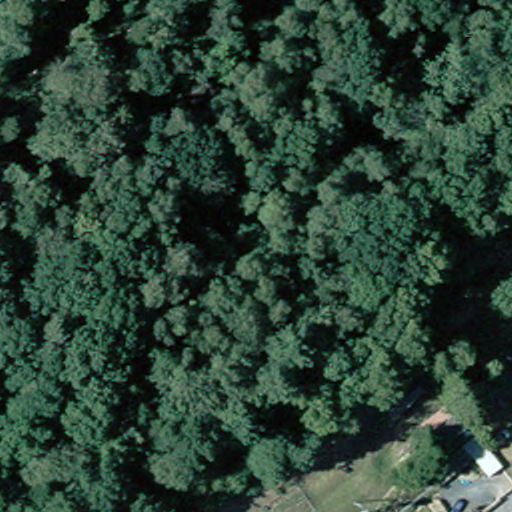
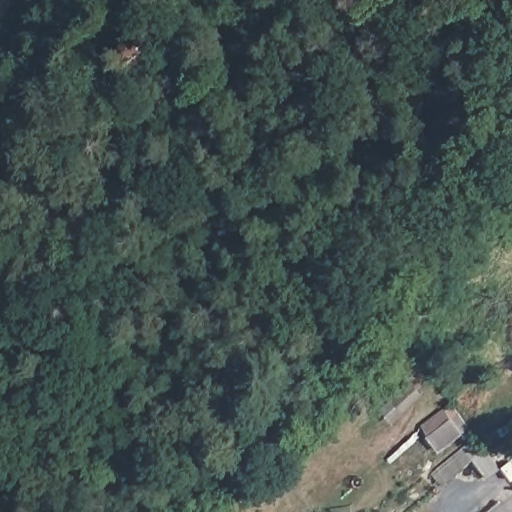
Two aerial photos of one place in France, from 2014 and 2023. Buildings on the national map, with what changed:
unchanged [(454,447),(441,429),(440,426),(430,433),(421,422),(431,415),(445,406),(452,417),(466,437),(454,447)]

